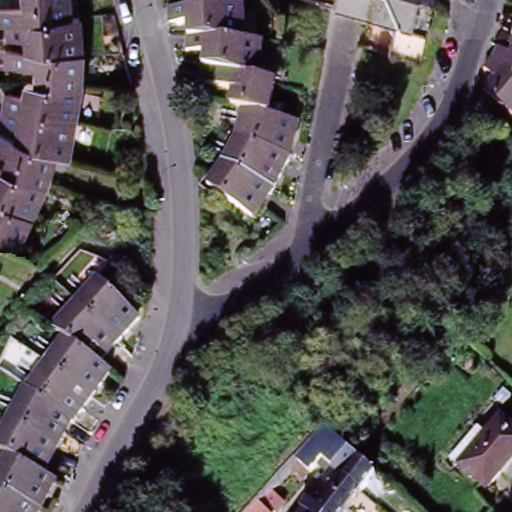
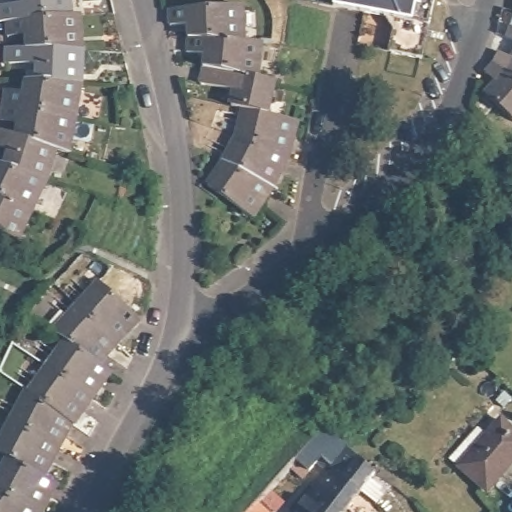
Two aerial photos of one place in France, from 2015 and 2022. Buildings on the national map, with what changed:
unchanged [(7,23),(0,24),(0,8),(24,5),(23,0),(70,0),(72,18),(7,23)]
unchanged [(334,5),(310,0),(433,0),(421,55),(387,48),(360,43),(355,41),(360,10),(334,5)]
unchanged [(232,43),(187,39),(187,27),(168,27),(167,12),(242,9),(244,44),(232,43)]
unchanged [(72,18),(80,18),(82,52),(27,51),(26,37),(7,37),(7,23),(72,18)]
unchanged [(510,43),(506,41),(510,29),(512,29),(512,44),(510,43)]
unchanged [(232,43),(244,44),(262,46),(257,80),(202,68),(204,58),(185,54),(187,39),(232,43)]
unchanged [(82,52),(81,85),(37,83),(37,68),(5,66),(7,50),(20,51),(27,51),(82,52)]
unchanged [(494,64),(500,55),(512,59),(512,78),(494,64)]
unchanged [(512,78),(512,120),(485,96),(495,83),(486,75),(494,64),(512,78)]
unchanged [(257,80),(275,84),(267,116),(257,114),(241,110),(230,108),(229,108),(232,94),(197,86),(202,68),(257,80)]
unchanged [(81,85),(76,121),(4,108),(7,93),(23,95),(25,83),(37,83),(81,85)]
unchanged [(76,121),(70,156),(63,153),(57,152),(39,145),(15,138),(17,126),(1,123),(4,108),(76,121)]
unchanged [(257,114),(267,116),(282,120),(297,123),(290,159),(235,139),(241,110),(257,114)]
unchanged [(57,152),(47,182),(4,168),(7,153),(0,151),(0,133),(15,138),(39,145),(57,152)]
unchanged [(290,159),(273,190),(222,163),(235,139),(290,159)]
unchanged [(273,190),(254,221),(205,187),(222,163),(273,190)]
unchanged [(32,214),(0,199),(0,167),(4,168),(47,182),(32,214)]
unchanged [(19,244),(0,236),(0,199),(32,214),(19,244)]
unchanged [(78,306),(99,284),(139,321),(119,344),(78,306)]
unchanged [(119,344),(99,366),(65,341),(54,333),(78,306),(119,344)]
unchanged [(99,366),(110,373),(110,374),(92,400),(81,392),(47,367),(65,341),(99,366)]
unchanged [(81,392),(92,400),(74,426),(73,426),(72,425),(27,393),(47,367),(81,392)]
unchanged [(72,425),(59,450),(8,423),(25,391),(27,393),(72,425)]
unchanged [(512,432),(512,459),(484,489),(457,465),(447,457),(461,442),(470,451),(498,419),(512,432)]
unchanged [(44,479),(6,459),(0,456),(0,438),(8,423),(59,450),(44,479)]
unchanged [(302,501),(315,484),(322,475),(312,467),(306,474),(303,472),(299,468),(297,471),(292,476),(287,471),(308,449),(306,448),(305,447),(315,433),(319,426),(320,427),(330,436),(343,447),(358,462),(371,474),(355,495),(344,511),(343,512),(294,512),(302,501)]
unchanged [(50,482),(57,485),(42,512),(35,512),(0,494),(0,471),(6,459),(44,479),(50,482)]
unchanged [(266,487),(272,493),(260,507),(266,512),(243,512),(266,487)]
unchanged [(0,494),(35,512),(0,512),(0,494)]

